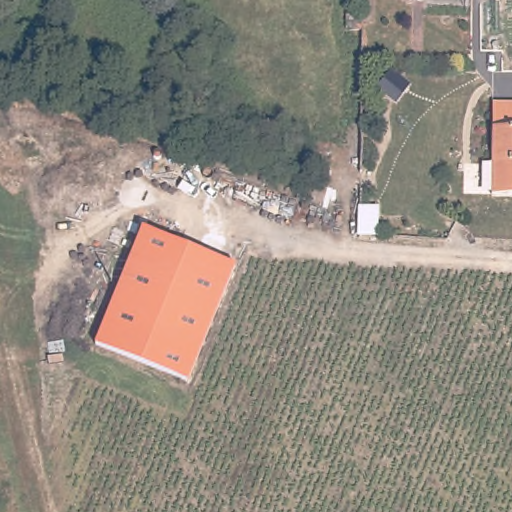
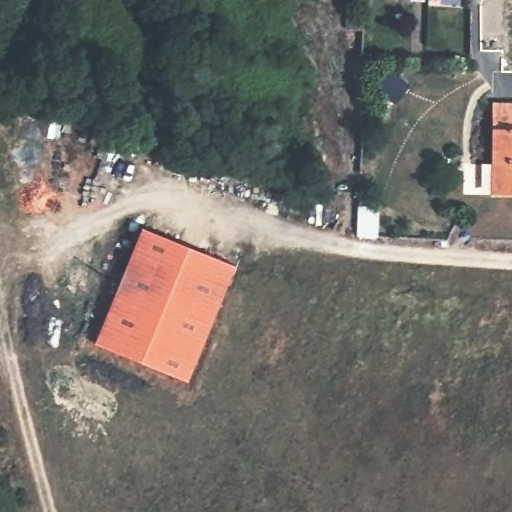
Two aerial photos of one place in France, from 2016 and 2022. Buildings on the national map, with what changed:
unchanged [(493,195),(494,129),(512,129),(512,195),(493,195)]
unchanged [(144,229),(237,265),(192,382),(98,346),(144,229)]

